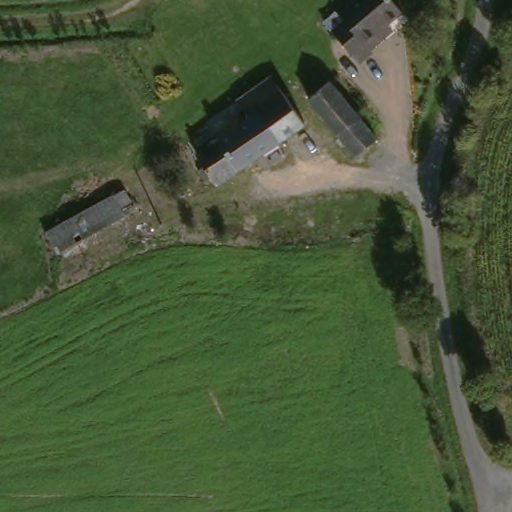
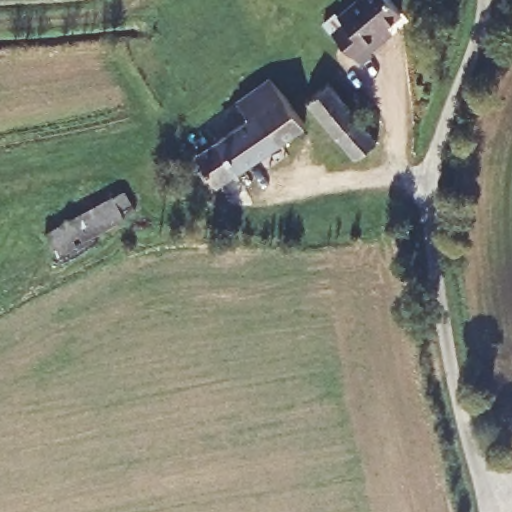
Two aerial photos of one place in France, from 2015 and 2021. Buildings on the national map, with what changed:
unchanged [(372,33),(378,39),(364,51),(367,53),(353,64),(326,34),(338,24),(333,18),(355,0),(385,0),(395,13),(372,33)]
unchanged [(358,158),(307,99),(328,81),(378,140),(358,158)]
unchanged [(285,102),(302,129),(215,191),(209,183),(203,187),(195,177),(203,170),(185,141),(267,84),(285,102)]
unchanged [(128,215),(52,259),(41,238),(117,195),(128,215)]

